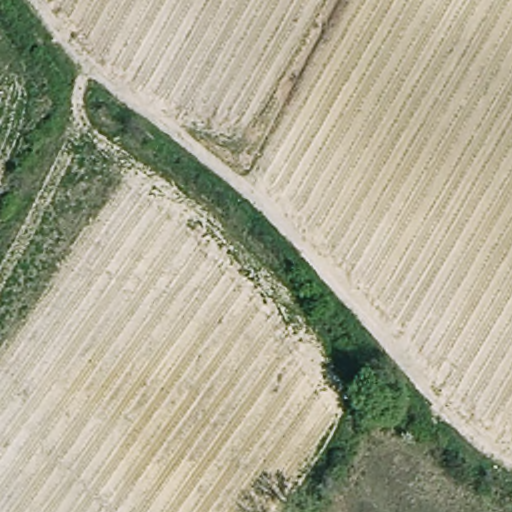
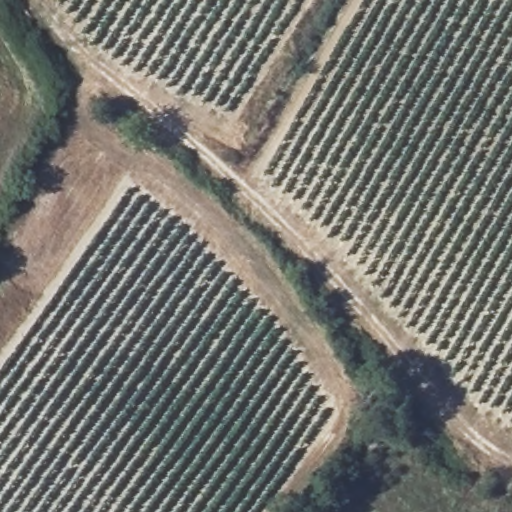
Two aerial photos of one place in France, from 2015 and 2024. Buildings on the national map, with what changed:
[]

